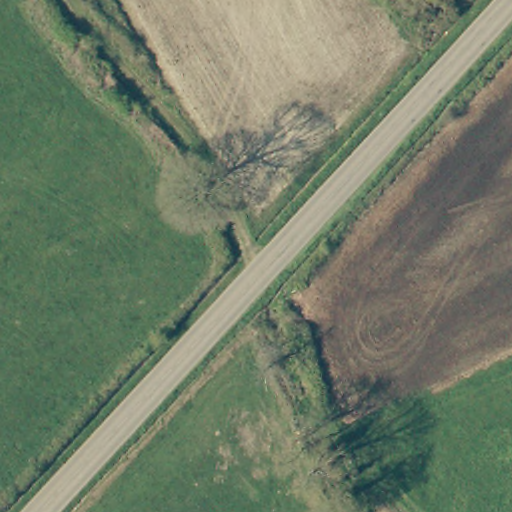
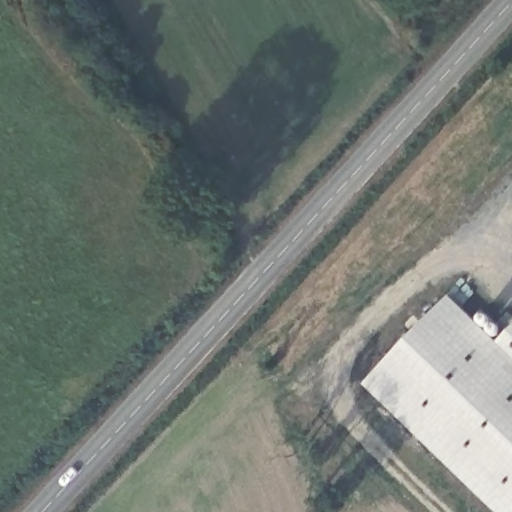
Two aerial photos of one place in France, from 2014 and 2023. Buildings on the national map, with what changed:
new [(449,294),(498,340),(512,325),(512,512),(497,512),(365,383),(449,294)]

